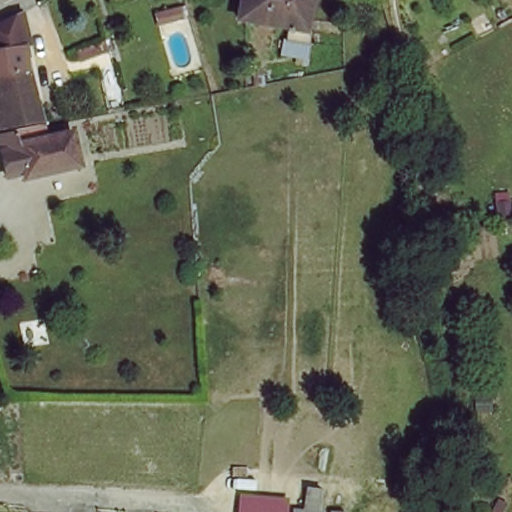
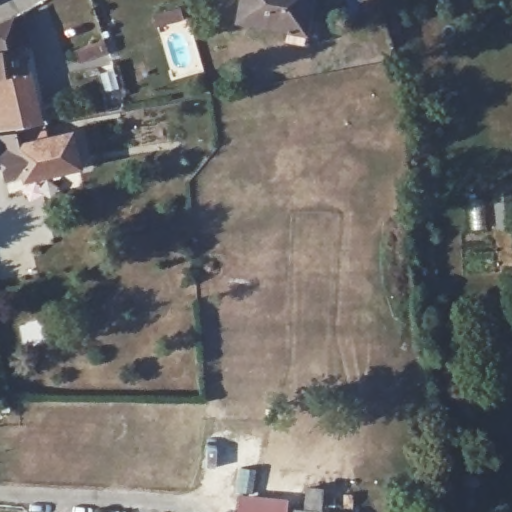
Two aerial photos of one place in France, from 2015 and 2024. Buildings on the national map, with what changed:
unchanged [(309,35),(242,25),(245,0),(314,0),(309,35)]
unchanged [(161,35),(158,22),(182,14),(186,26),(161,35)]
unchanged [(18,23),(43,128),(0,135),(0,33),(18,23)]
unchanged [(84,66),(80,53),(109,42),(114,56),(84,66)]
unchanged [(47,135),(50,147),(75,143),(81,176),(27,189),(24,179),(7,183),(0,149),(0,144),(47,135)]
unchanged [(322,491),(320,511),(337,512),(301,512),(305,488),(322,491)]
unchanged [(287,512),(301,512),(237,512),(238,496),(288,500),(287,512)]

